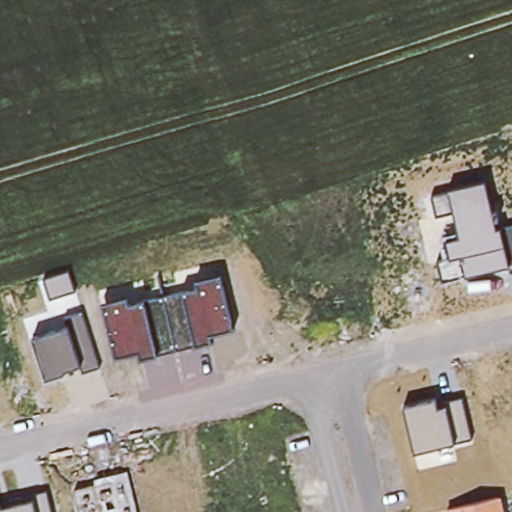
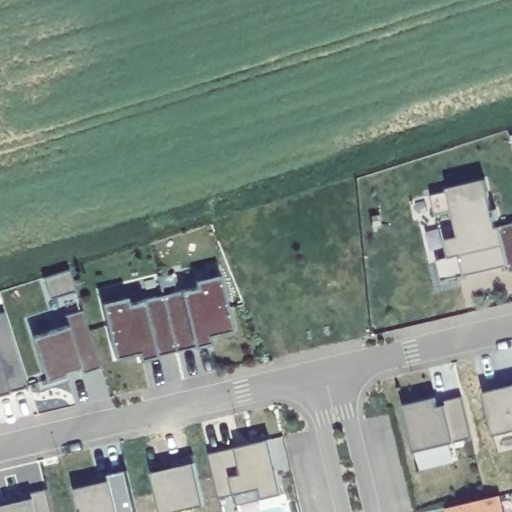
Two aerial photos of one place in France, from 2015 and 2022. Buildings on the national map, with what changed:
unchanged [(507,266),(465,276),(443,282),(438,261),(450,256),(447,241),(460,237),(455,212),(437,217),(432,196),(449,192),(448,190),(486,182),(493,211),(497,210),(500,221),(495,222),(497,229),(501,228),(512,225),(512,272),(509,272),(507,266)]
unchanged [(44,278),(69,270),(75,290),(50,298),(44,278)]
unchanged [(128,296),(130,303),(145,300),(183,291),(197,288),(195,280),(221,273),(232,330),(210,334),(211,342),(195,346),(195,343),(157,352),(157,356),(140,360),(138,352),(115,357),(103,303),(128,296)]
unchanged [(65,370),(65,373),(45,378),(32,337),(68,326),(65,317),(83,312),(100,367),(82,372),(80,365),(65,370)]
new [(7,314),(30,389),(0,397),(0,316),(7,314)]
unchanged [(512,383),(512,435),(496,439),(485,395),(507,390),(506,384),(512,383)]
unchanged [(402,406),(433,399),(435,405),(463,399),(472,439),(412,453),(402,406)]
new [(237,497),(221,502),(210,457),(239,450),(252,447),(272,442),(285,497),(265,502),(239,508),(237,497)]
new [(176,471),(174,462),(195,457),(207,507),(189,512),(163,512),(154,476),(176,471)]
unchanged [(75,488),(95,484),(93,478),(127,471),(137,512),(81,512),(75,488)]
unchanged [(33,501),(32,494),(47,491),(52,512),(0,512),(0,508),(33,501)]
unchanged [(445,510),(501,497),(504,512),(446,512),(445,510)]

